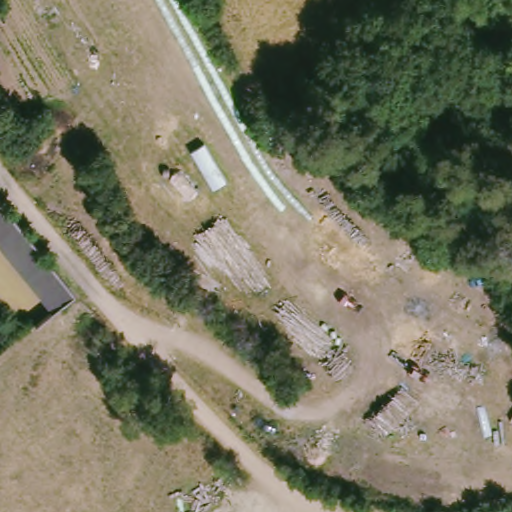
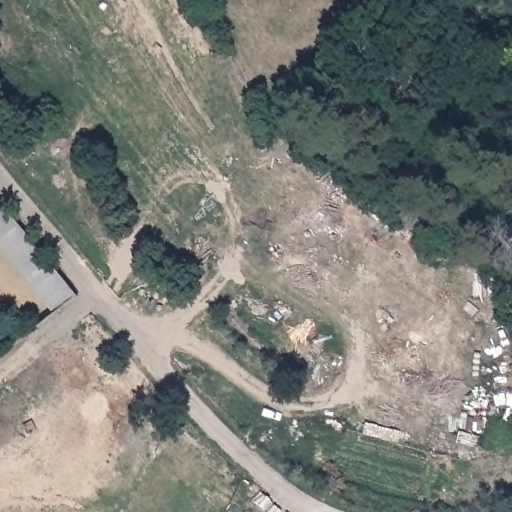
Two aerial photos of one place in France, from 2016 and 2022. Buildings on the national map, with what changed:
unchanged [(0,246),(0,202),(1,201),(75,295),(52,311),(0,246)]

